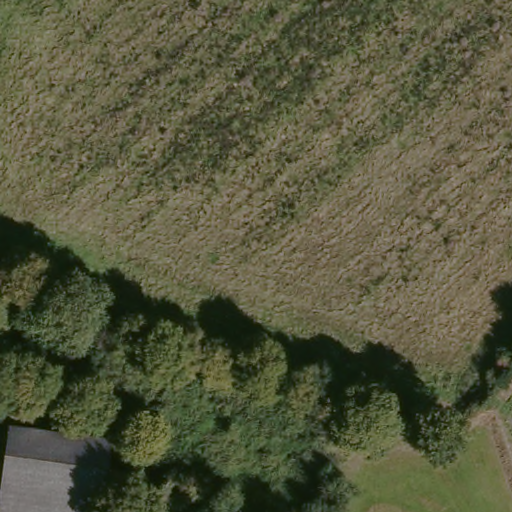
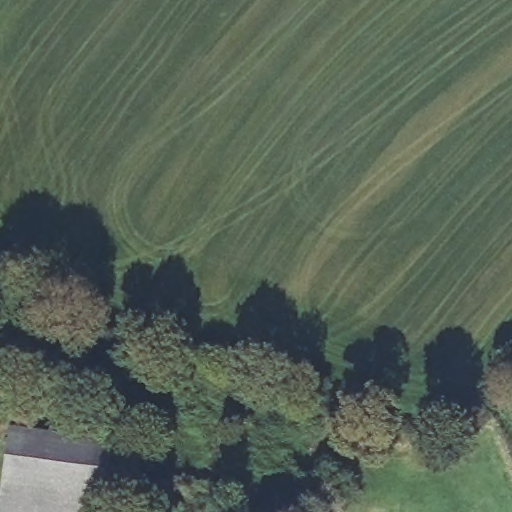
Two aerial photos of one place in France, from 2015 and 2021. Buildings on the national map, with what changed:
unchanged [(99,512),(0,512),(0,488),(6,438),(108,451),(99,512)]

